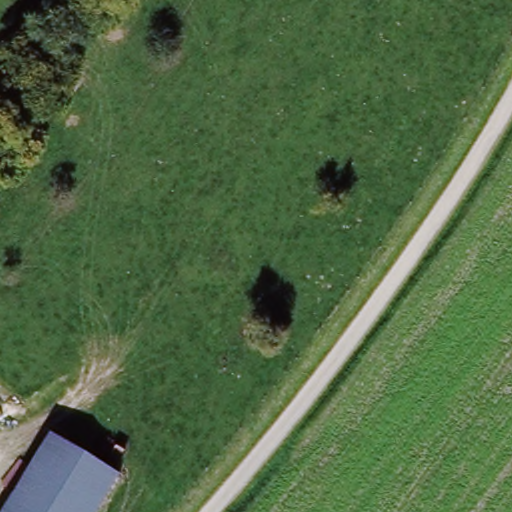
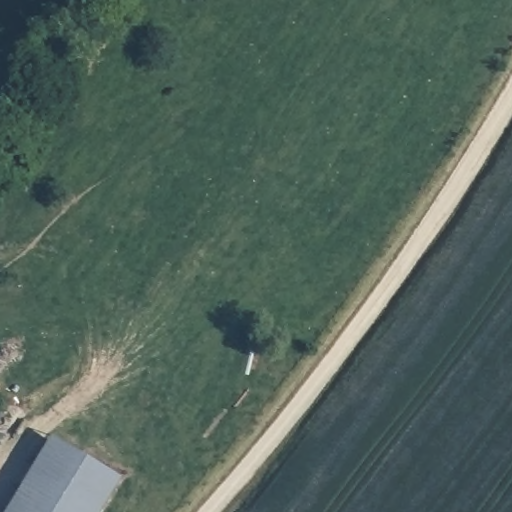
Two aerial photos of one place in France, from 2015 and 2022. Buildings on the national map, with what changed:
unchanged [(118,478),(97,512),(0,512),(48,434),(118,478)]

